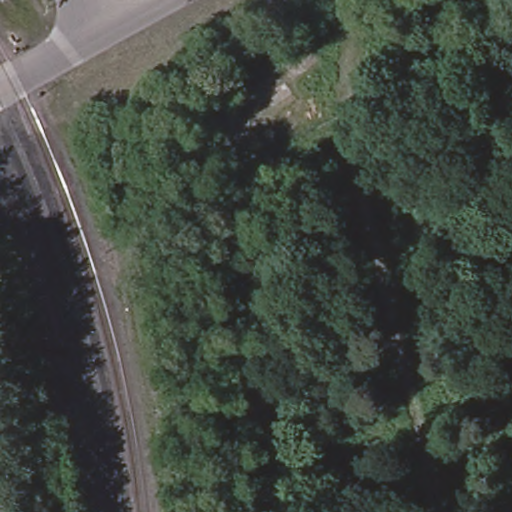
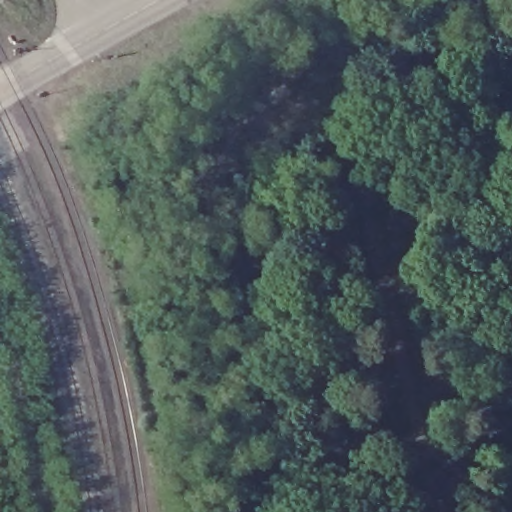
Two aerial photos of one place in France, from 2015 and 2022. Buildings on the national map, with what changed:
unchanged [(297,139),(305,156),(247,185),(236,165),(297,139)]

